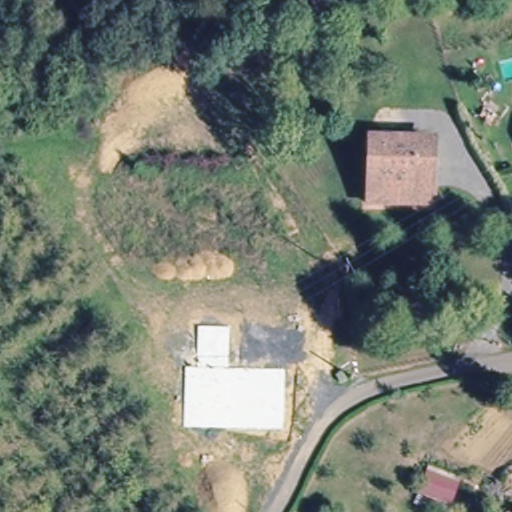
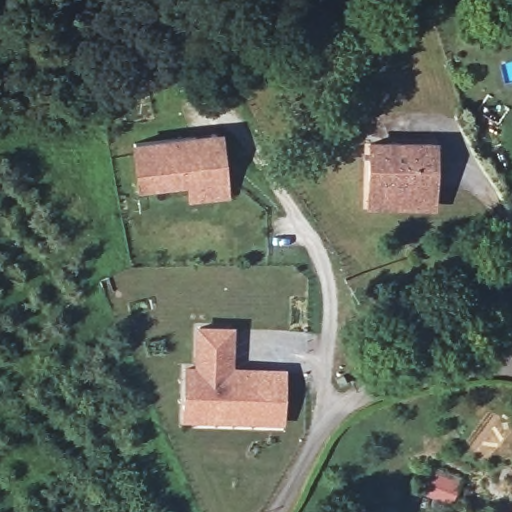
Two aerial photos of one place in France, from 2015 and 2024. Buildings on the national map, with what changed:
new [(129,141),(221,130),(230,197),(187,202),(186,186),(135,192),(129,141)]
unchanged [(389,204),(371,203),(372,143),(429,144),(428,190),(428,206),(389,204)]
new [(180,419),(181,363),(192,364),(193,323),(234,324),(233,365),(285,367),(281,423),(180,419)]
unchanged [(434,474),(429,491),(405,484),(410,467),(434,474)]

